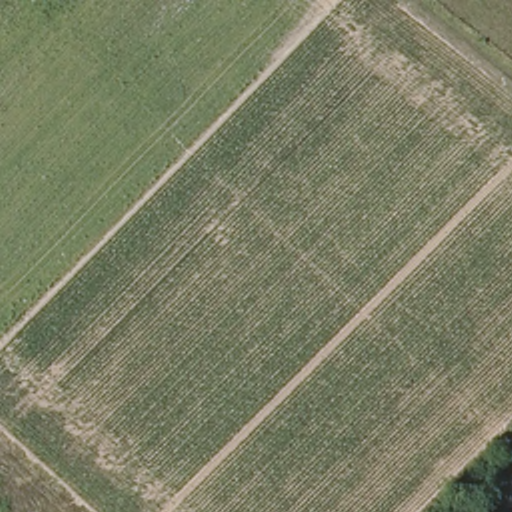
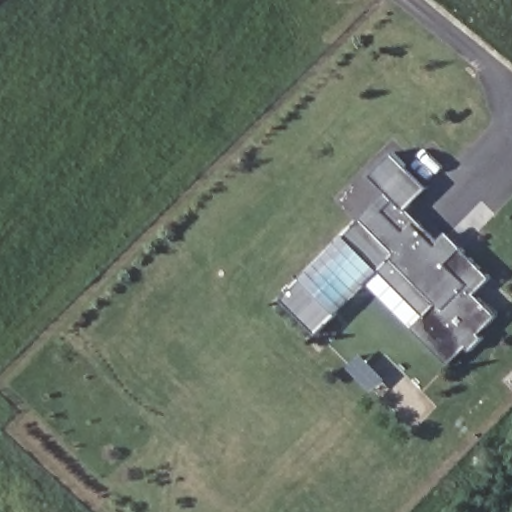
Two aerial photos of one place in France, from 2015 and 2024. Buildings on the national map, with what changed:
new [(478,293),(500,316),(481,333),(485,338),(473,350),(468,346),(449,364),(414,327),(426,315),(380,270),(317,333),(282,298),(386,191),(371,175),(394,152),(428,187),(409,207),(441,240),(449,232),(493,277),(478,293)]

